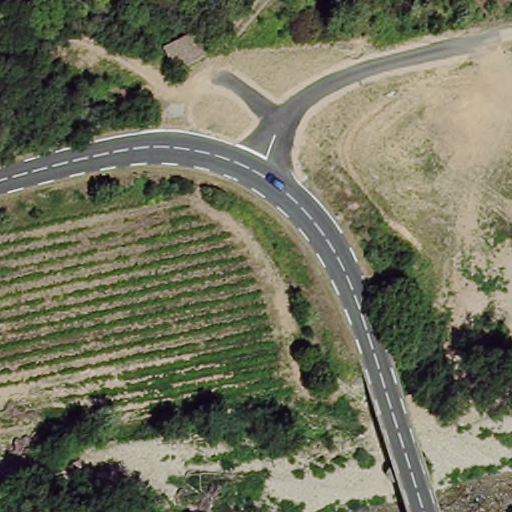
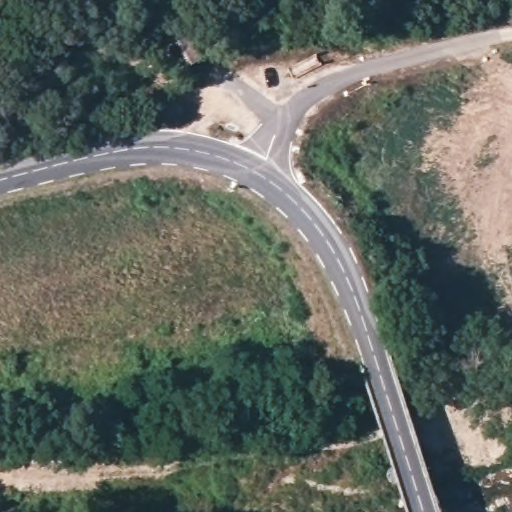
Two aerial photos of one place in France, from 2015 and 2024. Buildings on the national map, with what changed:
unchanged [(178,73),(168,46),(198,32),(208,55),(178,73)]

